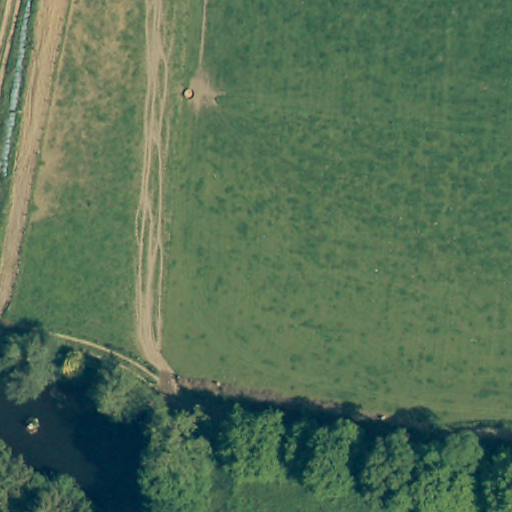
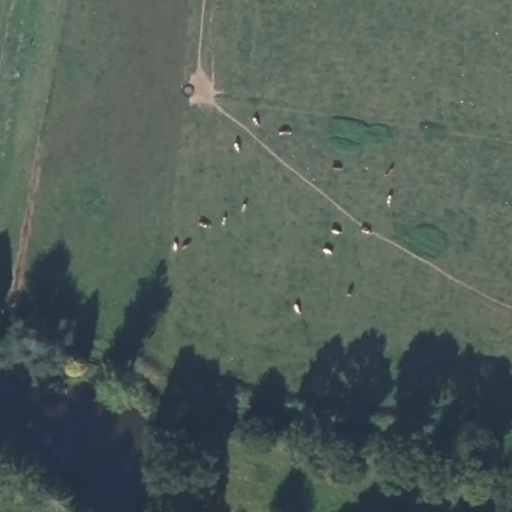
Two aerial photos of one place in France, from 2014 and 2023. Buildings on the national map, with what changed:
[]

